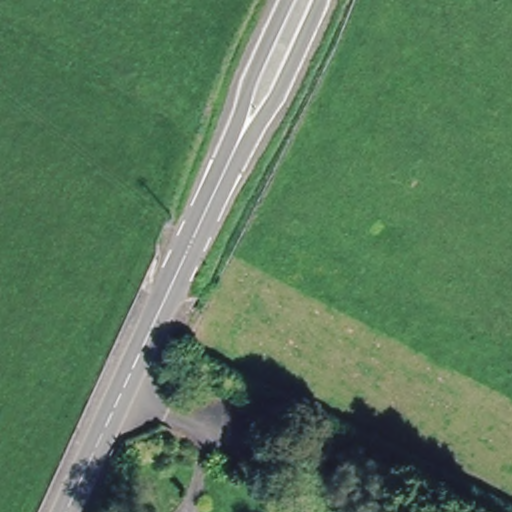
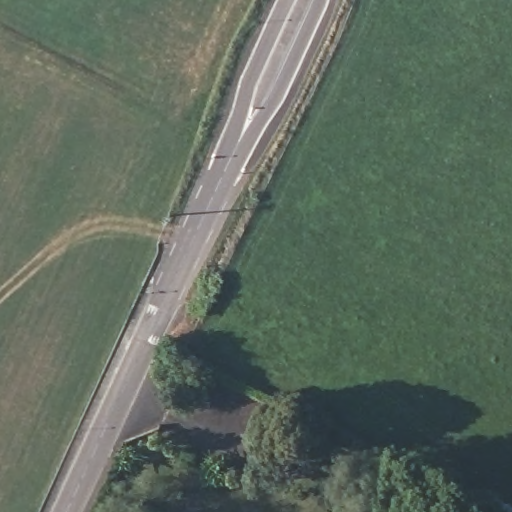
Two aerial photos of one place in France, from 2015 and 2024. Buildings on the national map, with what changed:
[]

